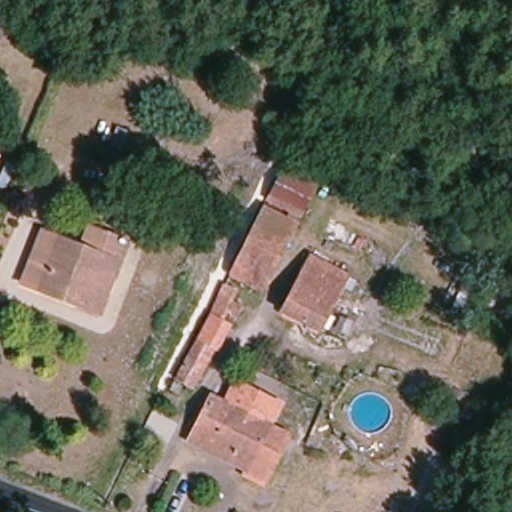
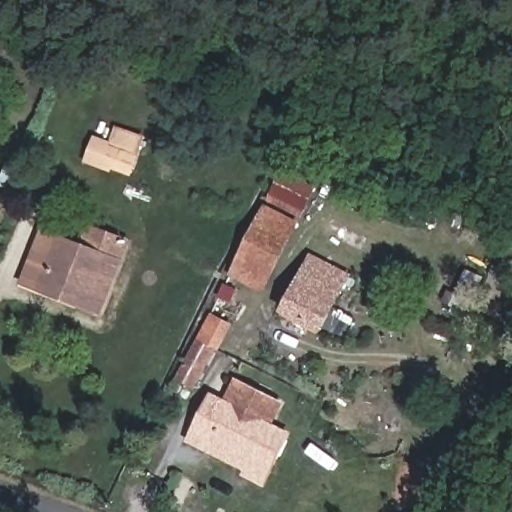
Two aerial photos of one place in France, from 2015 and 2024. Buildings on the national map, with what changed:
new [(113,171),(111,175),(82,161),(93,136),(109,142),(114,128),(145,139),(130,177),(113,171)]
unchanged [(285,247),(263,291),(231,273),(283,170),(314,185),(285,247)]
unchanged [(61,239),(80,246),(88,227),(123,240),(99,312),(76,303),(42,292),(45,282),(61,239)]
unchanged [(347,280),(321,328),(284,311),(309,260),(347,280)]
unchanged [(238,316),(228,311),(222,321),(209,314),(224,286),(229,287),(230,284),(238,288),(232,301),(242,306),(238,316)]
unchanged [(193,390),(179,382),(199,342),(213,348),(193,390)]
unchanged [(194,431),(214,392),(290,431),(270,470),(194,431)]
unchanged [(194,431),(270,470),(264,481),(188,443),(194,431)]

